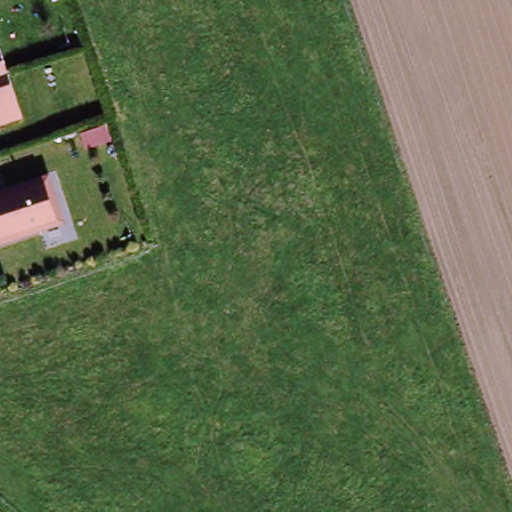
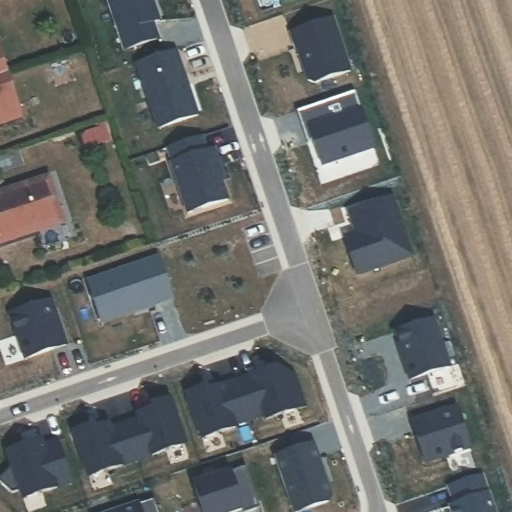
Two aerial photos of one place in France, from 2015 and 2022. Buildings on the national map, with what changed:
new [(160,23),(153,25),(159,40),(125,51),(107,0),(152,0),(160,23)]
new [(334,20),(351,71),(314,84),(308,81),(298,50),(296,50),(291,34),(334,20)]
unchanged [(25,119),(0,127),(0,43),(25,119)]
new [(176,51),(198,117),(158,130),(136,65),(176,51)]
new [(304,132),(297,113),(355,94),(374,151),(322,168),(313,143),(308,145),(304,132)]
new [(202,138),(207,154),(214,151),(221,172),(217,173),(227,202),(187,216),(165,150),(202,138)]
unchanged [(0,243),(0,197),(49,181),(62,223),(0,243)]
new [(355,235),(349,214),(393,199),(412,258),(357,277),(344,238),(355,235)]
new [(159,259),(173,300),(101,324),(87,284),(159,259)]
new [(51,303),(66,347),(24,360),(9,316),(51,303)]
new [(433,322),(449,369),(409,383),(404,366),(406,365),(396,334),(433,322)]
new [(276,370),(294,379),(304,409),(266,422),(264,418),(250,423),(236,383),(276,370)]
new [(204,390),(205,394),(236,383),(250,423),(234,428),(235,430),(202,441),(186,395),(204,390)]
new [(139,421),(137,416),(153,411),(152,407),(169,401),(184,447),(136,463),(124,426),(139,421)]
new [(456,409),(470,451),(425,467),(411,424),(456,409)]
new [(90,428),(91,432),(108,426),(110,431),(124,426),(136,463),(88,479),(73,434),(90,428)]
new [(11,467),(7,453),(24,447),(25,449),(40,444),(42,448),(57,443),(71,485),(23,501),(19,492),(11,495),(0,485),(0,478),(11,467)]
new [(330,498),(328,504),(303,512),(293,512),(275,459),(313,447),(330,498)]
new [(259,510),(252,512),(241,512),(239,512),(202,512),(193,486),(245,469),(259,510)]
new [(483,498),(488,497),(493,512),(450,512),(449,510),(454,508),(448,489),(477,479),(483,498)]
new [(157,512),(120,512),(153,501),(157,512)]

